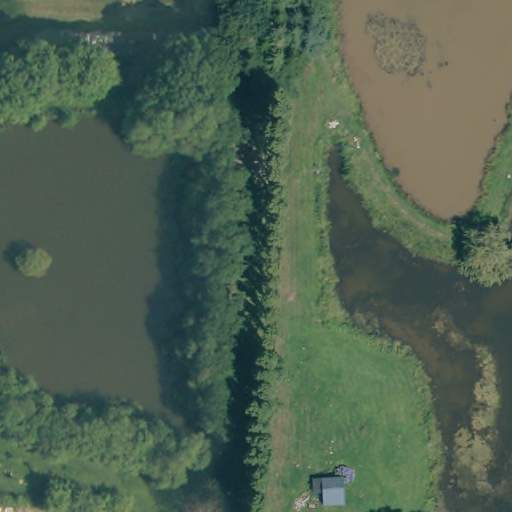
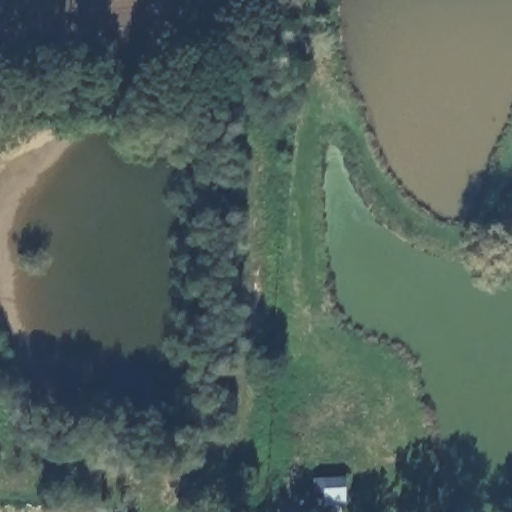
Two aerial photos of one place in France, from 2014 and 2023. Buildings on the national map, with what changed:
unchanged [(323,512),(318,479),(343,473),(350,509),(329,512),(323,512)]

